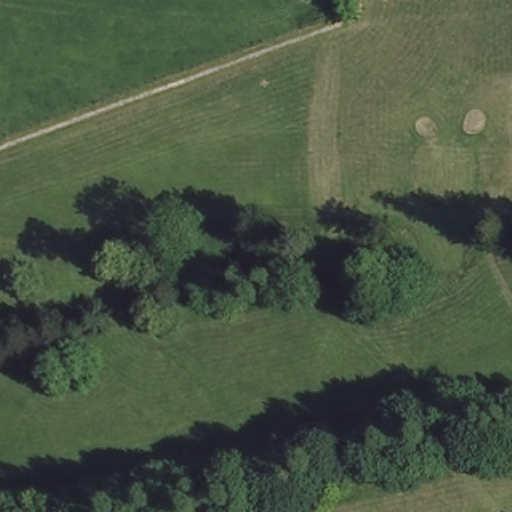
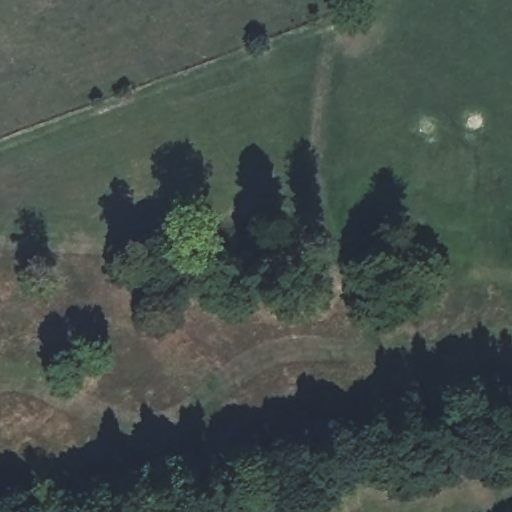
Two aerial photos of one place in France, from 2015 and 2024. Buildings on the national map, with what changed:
[]

